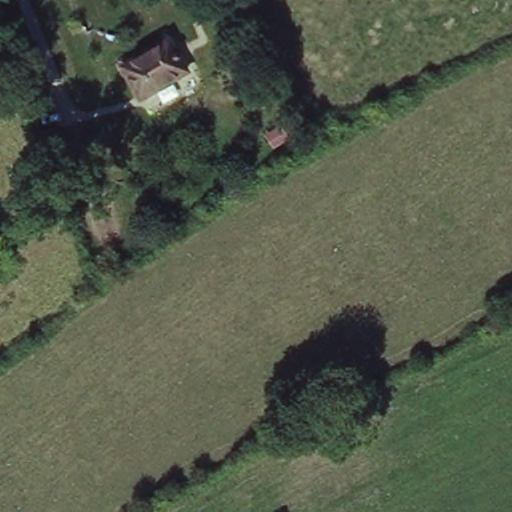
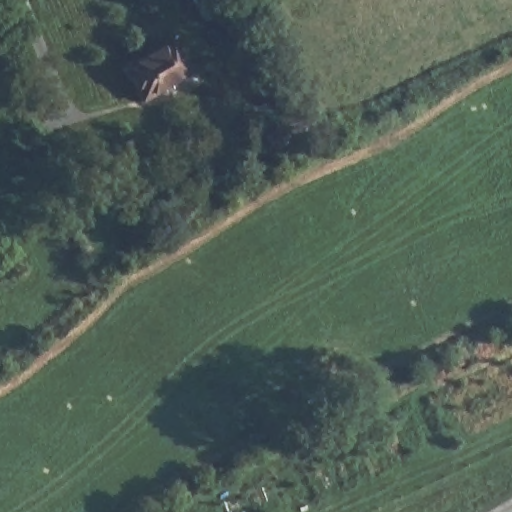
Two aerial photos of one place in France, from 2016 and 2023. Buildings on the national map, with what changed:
unchanged [(164,46),(183,74),(139,101),(121,73),(164,46)]
unchanged [(250,130),(259,125),(269,140),(259,146),(250,130)]

